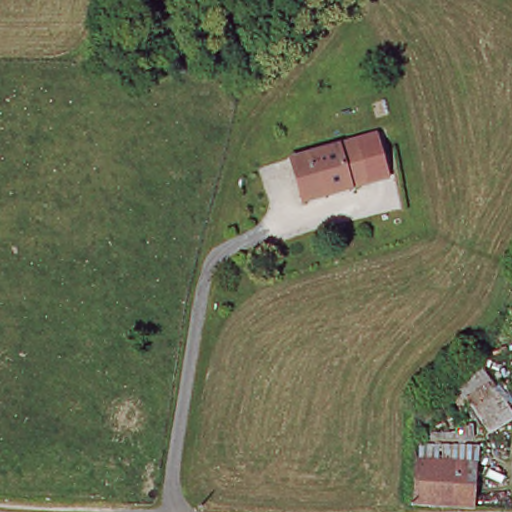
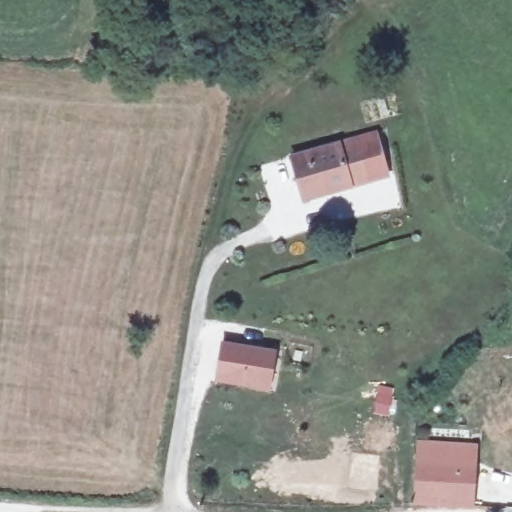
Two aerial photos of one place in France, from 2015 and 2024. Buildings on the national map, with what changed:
unchanged [(365,173),(303,196),(291,156),(351,134),(365,173)]
new [(276,353),(270,386),(221,377),(226,344),(276,353)]
unchanged [(480,356),(512,415),(512,416),(480,436),(451,373),(480,356)]
unchanged [(469,459),(470,509),(415,507),(417,457),(469,459)]

